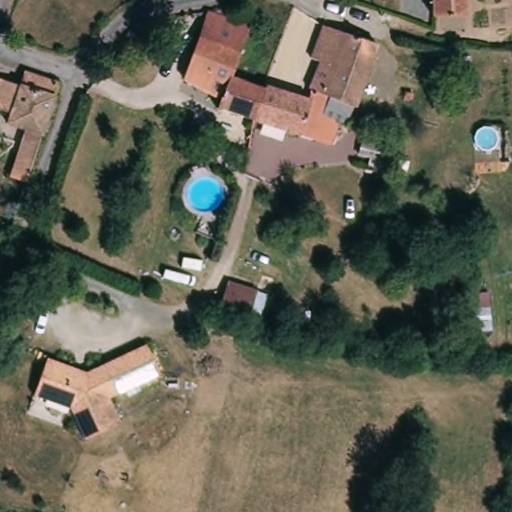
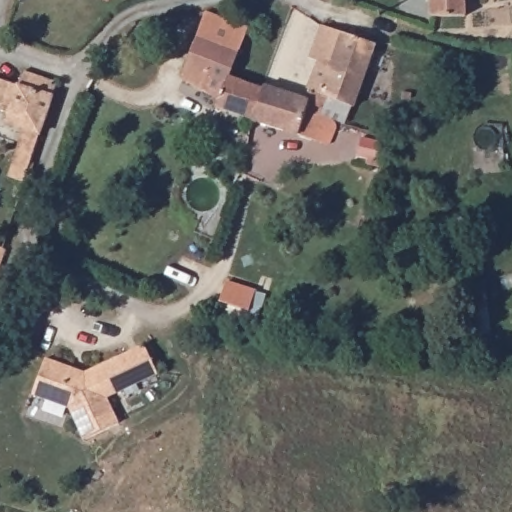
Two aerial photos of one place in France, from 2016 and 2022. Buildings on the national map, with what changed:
unchanged [(463,0),(463,12),(448,12),(430,12),(430,0),(463,0)]
unchanged [(205,13),(208,12),(246,27),(229,75),(235,78),(265,87),(258,105),(254,119),(253,121),(217,110),(220,102),(182,80),(202,14),(205,13)]
unchanged [(317,59),(310,55),(320,25),(322,25),(372,40),(362,73),(317,59)]
unchanged [(347,120),(333,116),(321,112),(323,100),(325,94),(308,87),(309,84),(317,59),(362,73),(347,120)]
unchanged [(7,177),(24,129),(21,127),(6,123),(8,115),(0,112),(0,78),(16,82),(21,70),(55,81),(39,130),(39,131),(38,134),(22,181),(7,177)]
unchanged [(323,142),(253,121),(254,119),(258,105),(265,87),(303,100),(308,87),(325,94),(323,100),(321,112),(333,116),(323,142)]
unchanged [(381,169),(359,156),(367,135),(386,142),(381,169)]
unchanged [(6,251),(0,270),(0,250),(5,251),(6,251)]
unchanged [(85,374),(145,343),(159,372),(107,398),(120,423),(85,441),(70,410),(32,398),(45,361),(85,374)]

